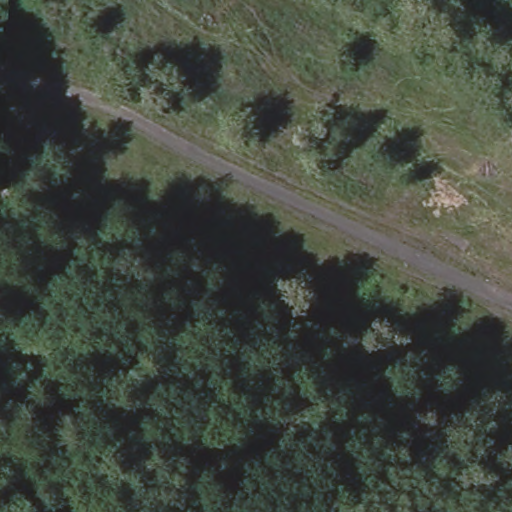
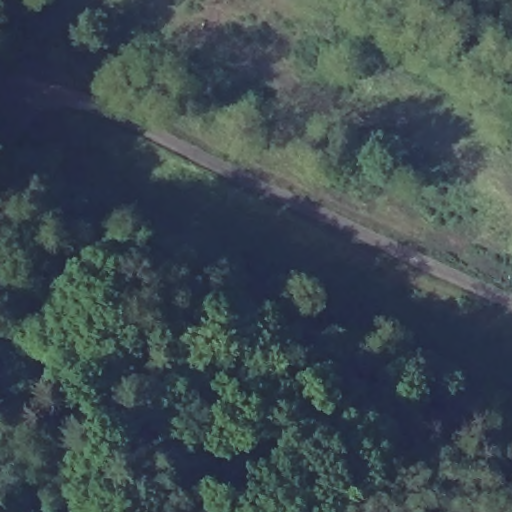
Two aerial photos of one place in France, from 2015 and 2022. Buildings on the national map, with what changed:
unchanged [(488,432),(460,420),(468,403),(499,416),(492,434),(488,432)]

